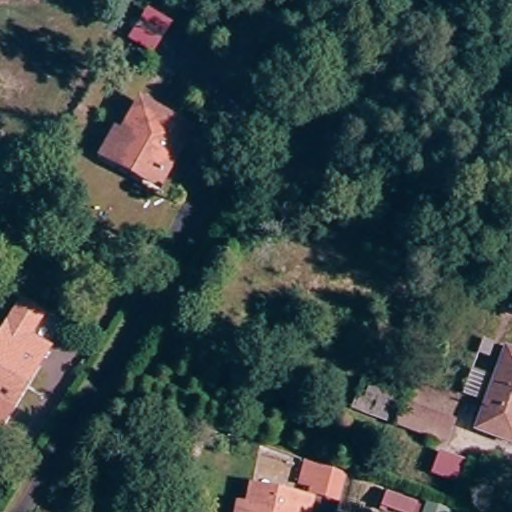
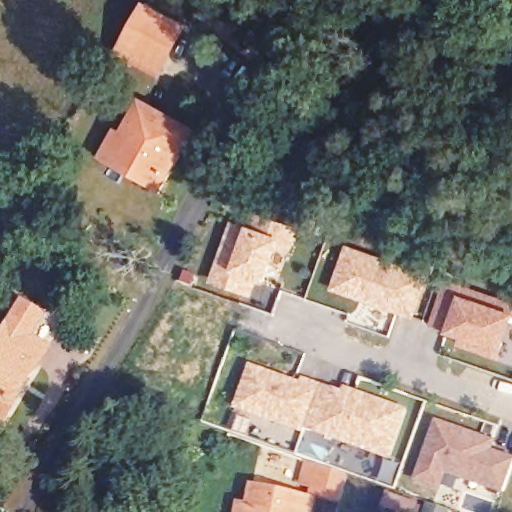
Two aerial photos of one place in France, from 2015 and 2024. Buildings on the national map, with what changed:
new [(143,0),(188,26),(155,80),(109,57),(143,0)]
unchanged [(157,187),(117,165),(103,157),(115,135),(123,139),(141,105),(188,132),(175,155),(171,163),(157,187)]
new [(242,225),(246,212),(300,230),(293,251),(281,246),(267,285),(257,282),(251,300),(209,286),(232,221),(242,225)]
unchanged [(6,265),(0,262),(0,245),(9,229),(21,237),(6,265)]
new [(429,275),(414,319),(331,291),(347,246),(429,275)]
new [(502,354),(500,361),(457,346),(459,337),(447,334),(449,329),(431,324),(449,279),(512,302),(512,322),(502,354)]
new [(233,300),(209,369),(169,356),(193,286),(233,300)]
unchanged [(0,399),(0,349),(27,303),(48,316),(34,339),(54,351),(18,410),(0,399)]
demolished [(479,432),(479,430),(488,405),(497,379),(507,351),(512,353),(512,444),(479,432)]
new [(300,382),(302,377),(341,393),(344,386),(408,409),(390,460),(305,429),(303,435),(235,412),(250,366),(300,382)]
demolished [(447,444),(398,426),(406,405),(455,423),(447,444)]
new [(497,439),(495,450),(512,457),(512,468),(504,492),(448,475),(442,491),(414,481),(436,419),(497,439)]
unchanged [(341,501),(311,494),(313,486),(302,484),(307,461),(348,475),(341,501)]
unchanged [(237,512),(239,505),(249,507),(253,488),(313,500),(310,512),(237,512)]
unchanged [(415,512),(390,512),(382,509),(387,493),(418,504),(415,512)]

